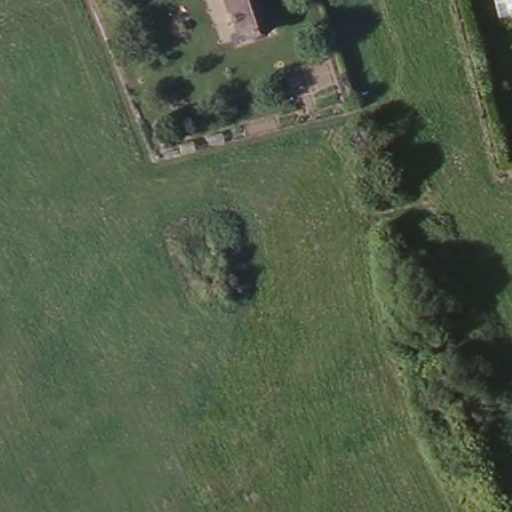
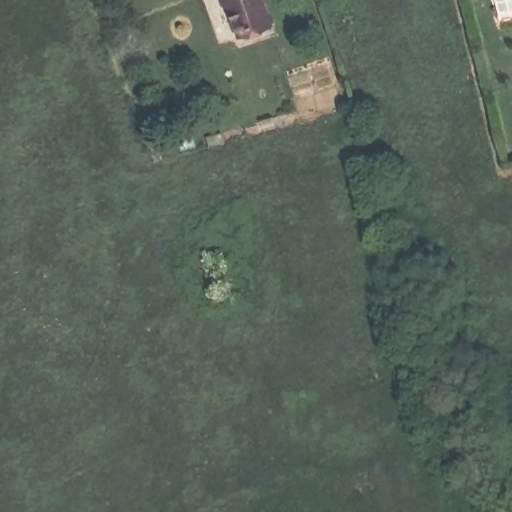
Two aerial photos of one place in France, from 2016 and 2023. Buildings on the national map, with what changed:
unchanged [(242,33),(235,8),(228,10),(224,0),(265,0),(272,22),(242,33)]
unchanged [(194,227),(207,277),(191,281),(177,233),(194,227)]

